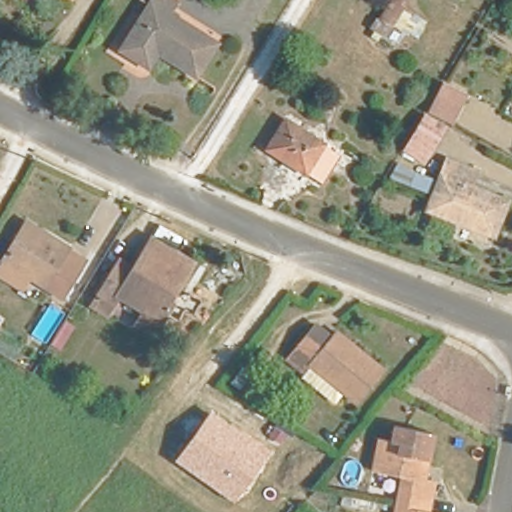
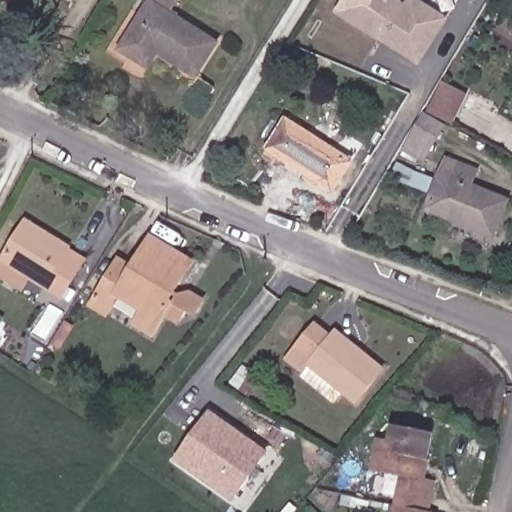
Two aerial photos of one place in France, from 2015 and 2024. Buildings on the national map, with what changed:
unchanged [(190,71),(154,48),(144,63),(115,44),(142,0),(169,0),(165,8),(212,37),(190,71)]
new [(437,25),(416,59),(338,11),(345,0),(378,0),(400,14),(405,6),(437,25)]
demolished [(406,7),(420,16),(401,44),(387,35),(406,7)]
unchanged [(463,96),(447,126),(424,114),(440,84),(463,96)]
unchanged [(418,116),(438,129),(418,162),(398,150),(418,116)]
unchanged [(266,148),(285,120),(341,155),(322,185),(308,175),(288,162),(266,148)]
unchanged [(507,201),(493,237),(426,209),(432,193),(404,184),(411,168),(438,177),(445,158),(477,171),(471,185),(507,201)]
unchanged [(66,249),(82,260),(61,297),(1,261),(20,230),(25,222),(51,238),(67,248),(66,249)]
unchanged [(190,257),(166,297),(170,299),(152,329),(134,319),(141,306),(116,293),(111,301),(96,292),(117,257),(131,264),(150,233),(190,257)]
new [(0,320),(0,314),(2,316),(0,320)]
unchanged [(353,401),(310,365),(303,372),(286,359),(314,325),(331,339),(335,332),(360,352),(380,369),(353,401)]
unchanged [(233,501),(175,462),(211,411),(268,453),(233,501)]
unchanged [(418,479),(428,481),(422,512),(389,512),(395,478),(367,472),(373,439),(384,441),(387,426),(426,435),(418,479)]

